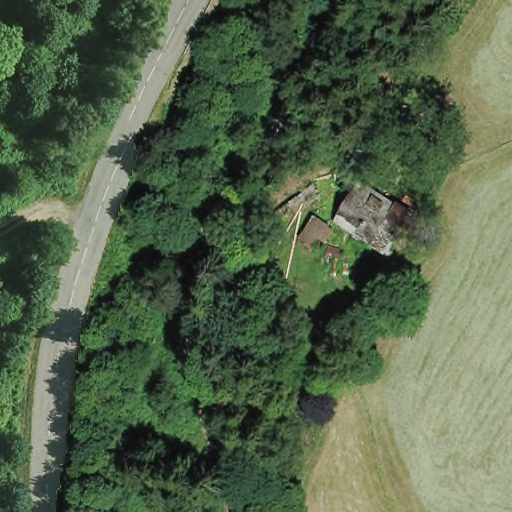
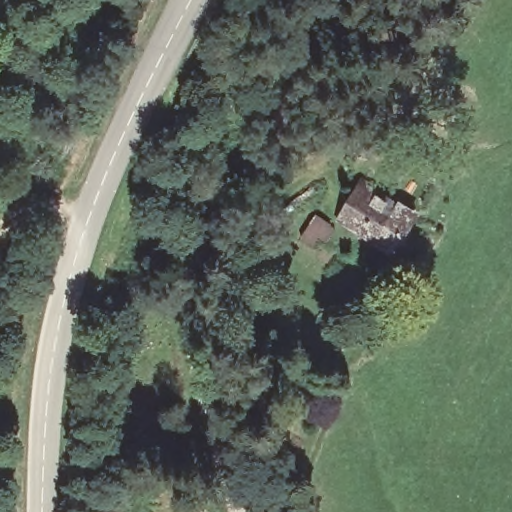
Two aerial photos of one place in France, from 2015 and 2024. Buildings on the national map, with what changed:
unchanged [(367,227),(347,214),(369,181),(402,202),(409,206),(421,214),(400,247),(381,235),(372,229),(369,234),(364,232),(367,227)]
unchanged [(305,239),(300,236),(314,215),(319,218),(326,222),(312,244),(305,239)]

